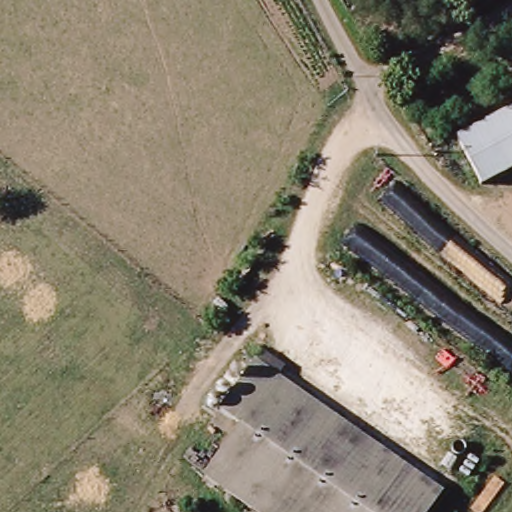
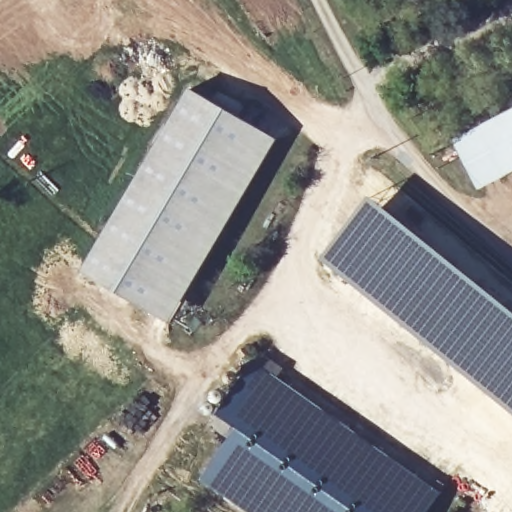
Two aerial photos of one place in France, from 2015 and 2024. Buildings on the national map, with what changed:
new [(278,139),(172,322),(82,270),(188,88),(278,139)]
unchanged [(491,185),(467,136),(512,115),(512,175),(491,185)]
new [(370,196),(423,234),(512,307),(512,412),(455,368),(322,259),(370,196)]
unchanged [(197,457),(219,415),(257,359),(439,489),(423,512),(253,512),(203,477),(197,457)]

